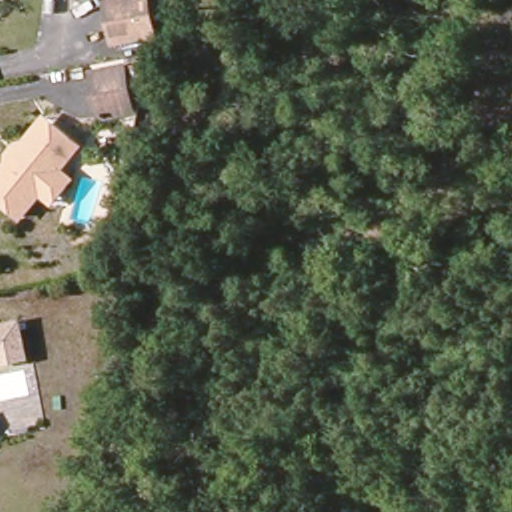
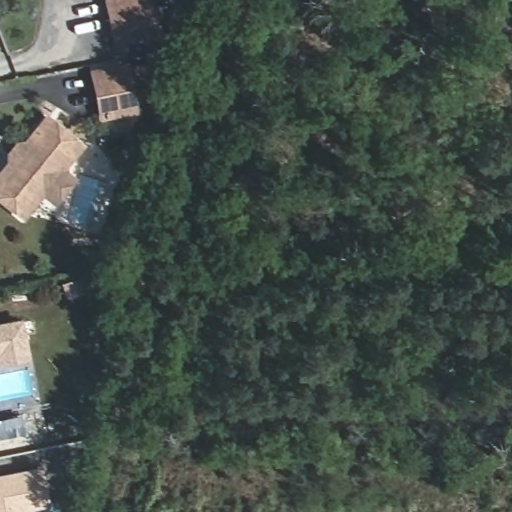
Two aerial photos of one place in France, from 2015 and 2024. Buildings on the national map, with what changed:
unchanged [(125,0),(146,0),(156,35),(116,46),(104,6),(125,0)]
unchanged [(135,113),(96,121),(88,71),(126,64),(135,113)]
unchanged [(78,179),(53,206),(41,197),(21,221),(0,204),(0,167),(4,161),(5,156),(17,141),(24,141),(50,111),(85,144),(64,167),(78,179)]
unchanged [(23,356),(0,361),(0,325),(15,321),(23,356)]
new [(50,506),(24,512),(0,512),(0,474),(41,465),(50,506)]

